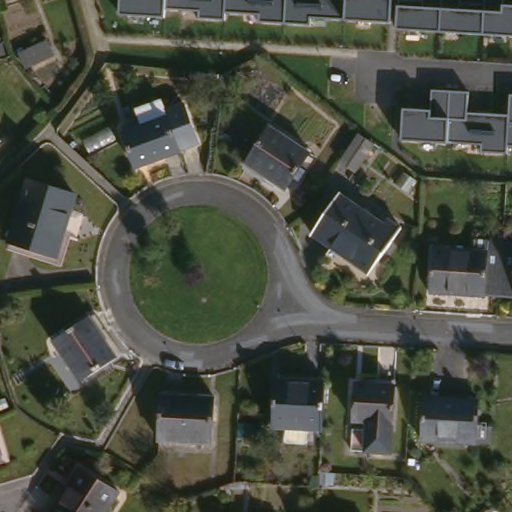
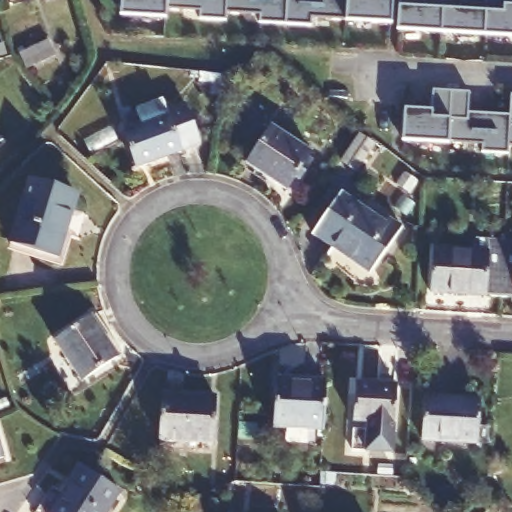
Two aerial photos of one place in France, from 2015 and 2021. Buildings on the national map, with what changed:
unchanged [(489,0),(507,0),(507,2),(512,2),(512,33),(398,27),(398,20),(348,19),(349,15),(312,14),(312,21),(262,19),(264,10),(230,10),(229,16),(204,15),(204,7),(167,5),(167,14),(122,10),(123,0),(463,0),(489,1),(489,0)]
unchanged [(47,46),(53,60),(24,73),(17,59),(47,46)]
unchanged [(434,107),(435,86),(471,88),(471,110),(511,112),(512,98),(512,142),(511,142),(510,151),(485,150),(485,142),(449,140),(405,136),(407,106),(434,107)]
unchanged [(179,114),(179,110),(200,105),(202,147),(185,149),(183,152),(137,157),(134,118),(179,114)]
unchanged [(276,124),(314,150),(288,187),(251,160),(276,124)]
unchanged [(366,137),(380,148),(361,175),(346,166),(366,137)]
unchanged [(0,146),(0,140),(3,143),(0,146)]
unchanged [(34,180),(82,195),(64,256),(15,240),(34,180)]
unchanged [(348,196),(389,229),(392,226),(403,235),(382,265),(373,258),(367,265),(335,240),(332,244),(319,234),(348,196)]
unchanged [(433,285),(437,246),(475,249),(477,234),(507,236),(503,291),(433,285)]
unchanged [(512,237),(512,292),(503,291),(507,236),(512,237)]
unchanged [(98,316),(122,358),(85,378),(60,337),(98,316)]
unchanged [(292,441),(292,426),(278,425),(281,378),(335,381),(332,429),(315,427),(313,441),(292,441)]
unchanged [(395,451),(372,450),(374,422),(362,422),(365,384),(400,386),(397,423),(395,451)]
unchanged [(169,391),(221,395),(217,442),(166,440),(169,391)]
unchanged [(431,398),(486,398),(484,441),(430,440),(431,398)]
unchanged [(0,456),(0,423),(9,454),(0,456)]
unchanged [(109,512),(53,512),(82,464),(124,489),(109,512)]

